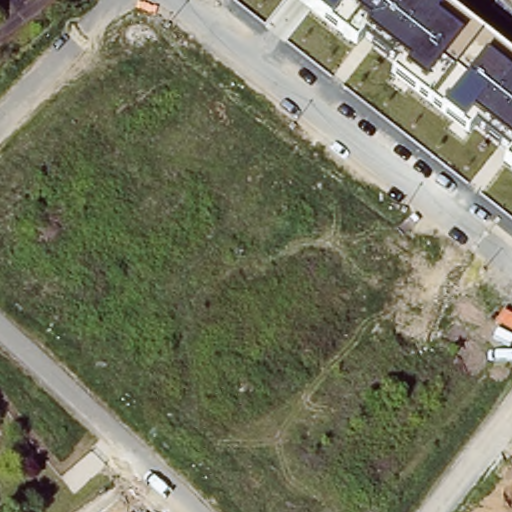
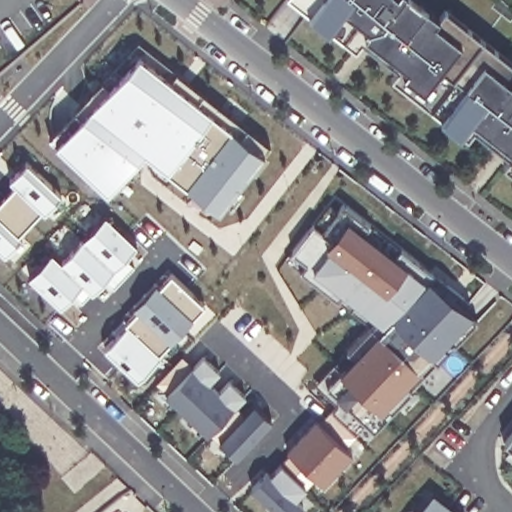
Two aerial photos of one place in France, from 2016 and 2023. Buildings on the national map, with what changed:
unchanged [(504,162),(511,155),(474,126),(468,136),(391,75),(399,67),(363,39),(357,46),(297,0),(422,0),(437,12),(444,5),(512,58),(512,168),(504,162)]
new [(264,152),(219,208),(144,151),(106,190),(56,142),(139,54),(171,77),(178,70),(271,143),(264,152)]
new [(42,209),(21,232),(23,235),(6,253),(0,247),(0,210),(20,190),(10,180),(28,162),(62,194),(45,212),(42,209)]
new [(473,312),(471,315),(476,319),(413,387),(373,430),(366,423),(346,446),(354,453),(324,485),(316,477),(307,487),(296,498),(303,505),(295,512),(277,512),(250,485),(266,468),(270,472),(279,461),(281,462),(291,452),(286,448),(315,417),(319,421),(336,403),(316,382),(346,352),(371,325),(300,268),(305,261),(292,250),(313,222),(324,230),(344,204),(402,247),(467,297),(464,305),(473,312)]
new [(128,256),(134,264),(113,287),(105,278),(93,290),(83,301),(74,292),(61,306),(28,275),(53,250),(61,258),(105,212),(137,244),(128,256)]
new [(161,352),(137,377),(104,346),(123,326),(119,323),(136,308),(133,305),(156,280),(161,283),(171,271),(204,302),(161,352)]
new [(236,457),(211,431),(208,433),(166,392),(168,391),(154,381),(181,354),(192,363),(203,353),(221,370),(211,382),(218,387),(228,377),(248,395),(236,406),(244,413),(255,403),(273,418),(236,457)]
new [(504,440),(512,430),(512,445),(504,440)]
new [(460,512),(417,512),(433,491),(460,512)]
new [(415,512),(408,512),(411,509),(415,512)]

